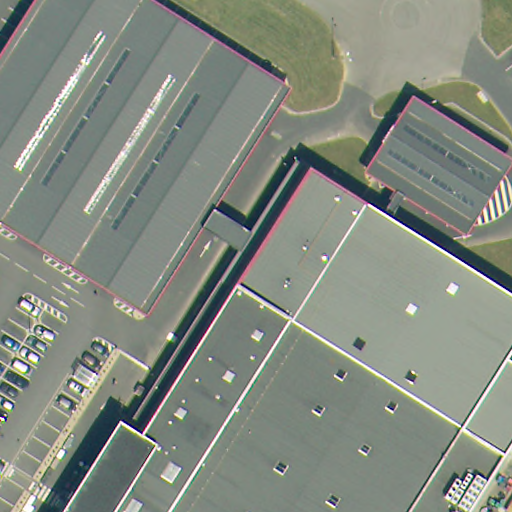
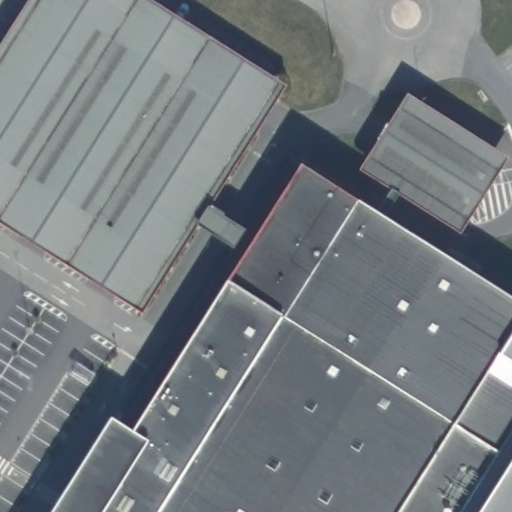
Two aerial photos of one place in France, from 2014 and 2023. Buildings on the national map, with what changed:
unchanged [(0,47),(29,0),(149,0),(287,88),(145,314),(0,224),(0,47)]
unchanged [(362,172),(409,96),(509,160),(462,235),(362,172)]
unchanged [(449,420),(364,367),(221,278),(294,162),(512,300),(512,334),(498,357),(512,366),(512,418),(493,448),(449,420)]
unchanged [(493,448),(453,512),(59,512),(66,497),(75,484),(94,468),(107,475),(132,434),(126,431),(221,278),(364,367),(449,420),(493,448)]

